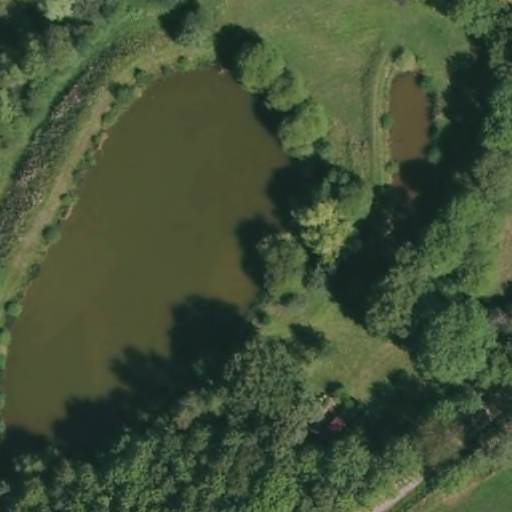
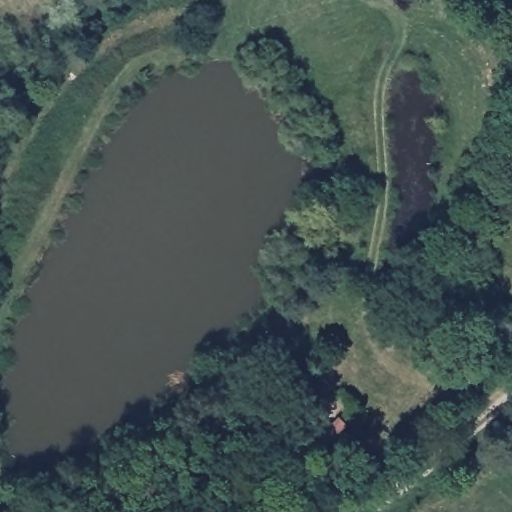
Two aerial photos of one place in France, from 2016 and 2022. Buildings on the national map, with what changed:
unchanged [(341,419),(362,444),(338,463),(317,440),(341,419)]

